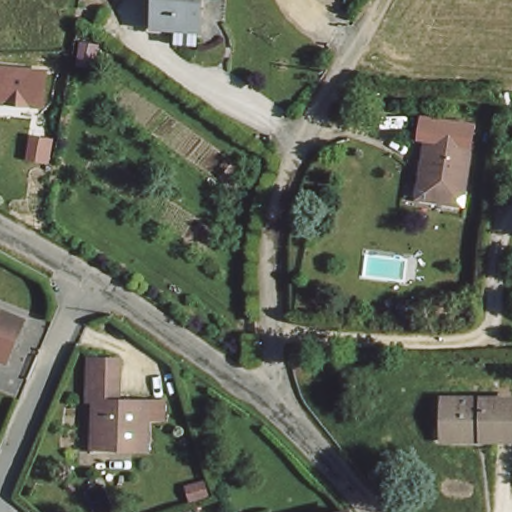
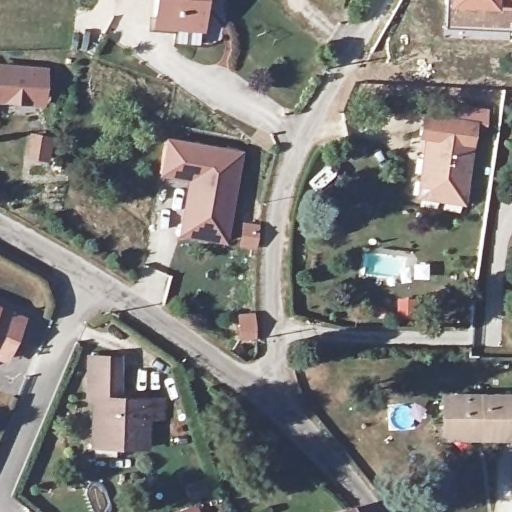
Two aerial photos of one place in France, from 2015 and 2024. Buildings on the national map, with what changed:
unchanged [(154,29),(157,0),(199,0),(197,30),(154,29)]
new [(512,0),(512,24),(507,24),(507,29),(444,26),(446,0),(512,0)]
unchanged [(50,68),(46,108),(0,103),(0,65),(50,68)]
unchanged [(415,186),(421,140),(414,139),(415,121),(455,127),(453,146),(465,147),(460,190),(455,194),(433,206),(423,205),(413,203),(415,186)]
new [(226,245),(179,236),(187,182),(160,177),(166,138),(243,153),(226,245)]
unchanged [(12,317),(10,324),(19,328),(5,363),(0,361),(0,311),(12,317)]
unchanged [(93,443),(93,402),(88,402),(90,359),(125,359),(125,401),(147,403),(165,404),(165,421),(147,420),(146,452),(117,451),(93,451),(93,443)]
unchanged [(483,431),(449,430),(450,396),(512,396),(512,438),(484,438),(483,431)]
unchanged [(201,487),(180,494),(175,479),(196,472),(201,487)]
unchanged [(353,507),(355,512),(326,512),(353,507)]

